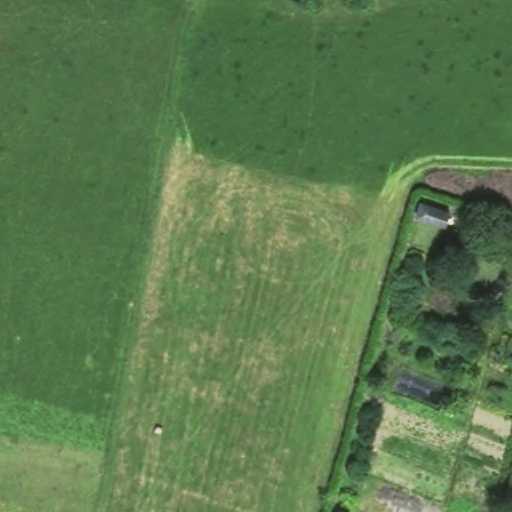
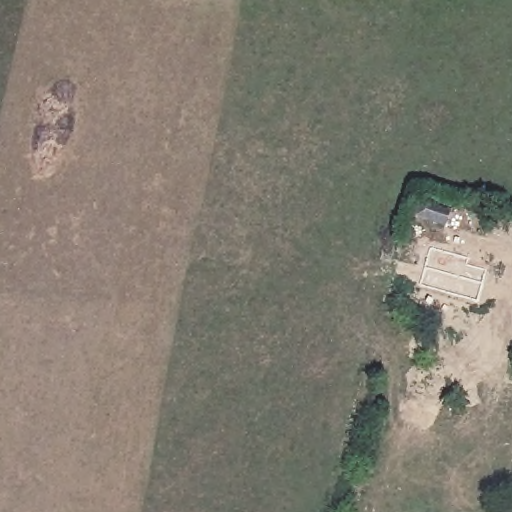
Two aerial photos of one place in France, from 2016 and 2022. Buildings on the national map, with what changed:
unchanged [(412,217),(415,200),(447,210),(442,226),(412,217)]

